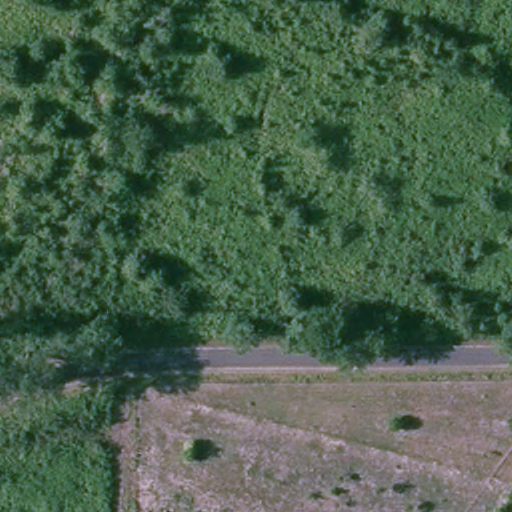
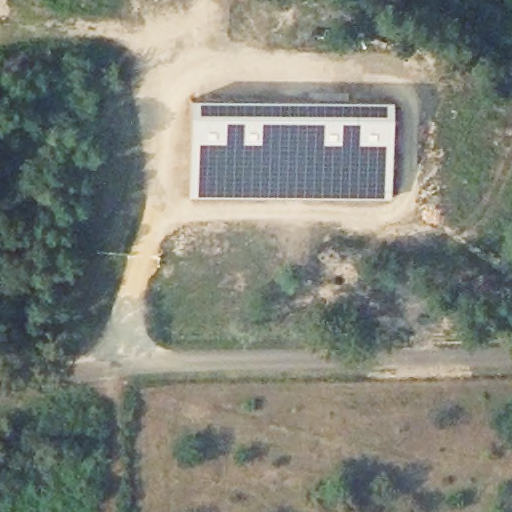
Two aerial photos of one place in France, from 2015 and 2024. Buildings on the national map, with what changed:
new [(391,101),(390,199),(187,198),(190,100),(391,101)]

